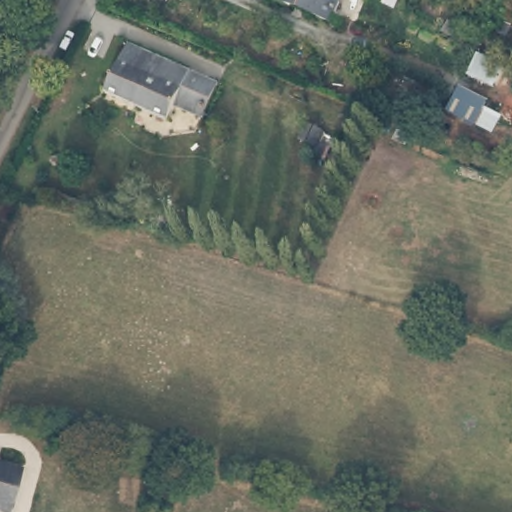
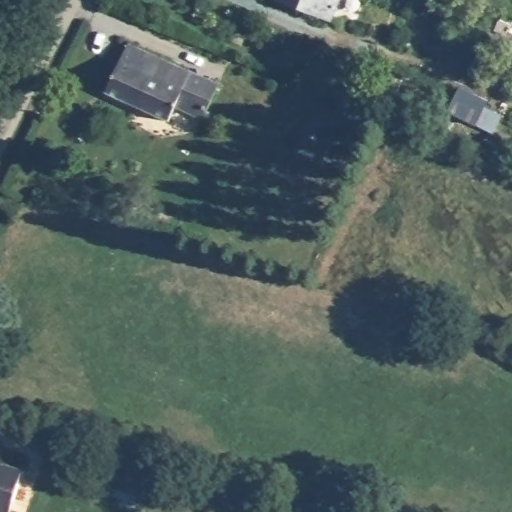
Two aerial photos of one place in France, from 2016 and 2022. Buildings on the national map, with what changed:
unchanged [(330,22),(277,0),(339,0),(330,22)]
unchanged [(218,85),(202,117),(173,105),(165,123),(104,91),(128,43),(218,85)]
unchanged [(7,512),(0,512),(0,469),(19,475),(7,512)]

